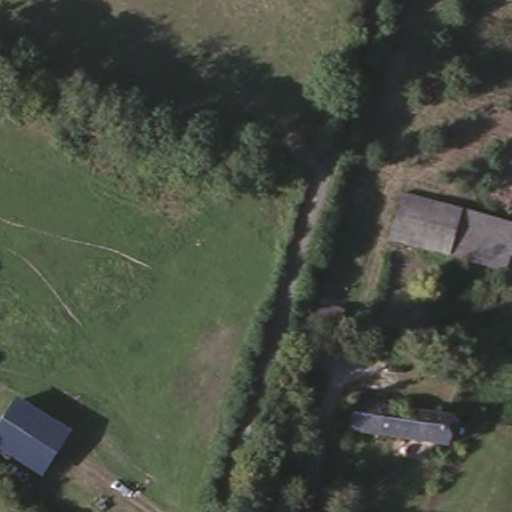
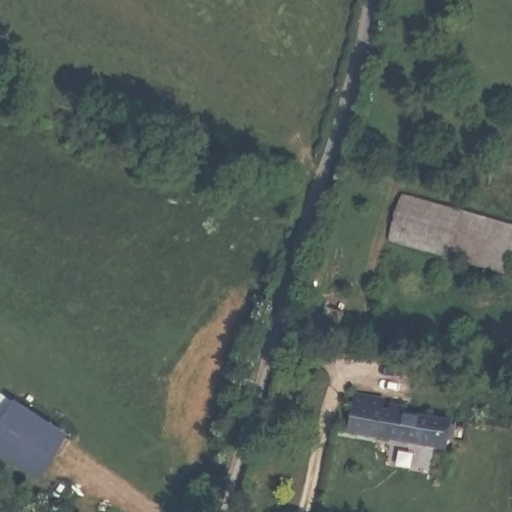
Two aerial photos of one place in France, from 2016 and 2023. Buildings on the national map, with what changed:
unchanged [(389,239),(403,188),(512,221),(512,264),(509,274),(389,239)]
unchanged [(297,329),(307,296),(349,312),(347,339),(297,329)]
unchanged [(250,355),(237,406),(214,399),(226,349),(250,355)]
unchanged [(398,402),(413,405),(410,415),(456,424),(451,449),(354,429),(358,405),(362,390),(388,395),(384,409),(395,412),(398,402)]
unchanged [(0,452),(0,422),(12,399),(70,433),(43,478),(0,452)]

